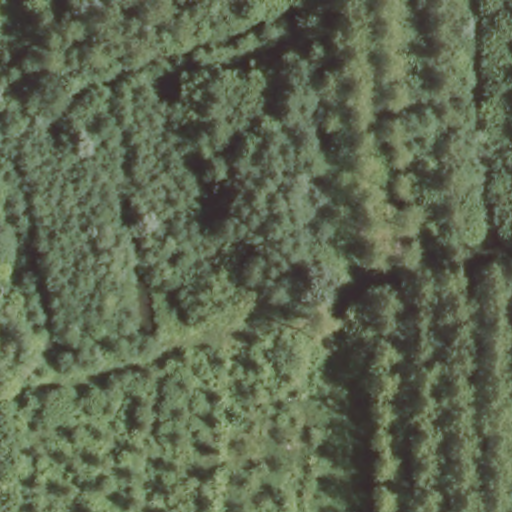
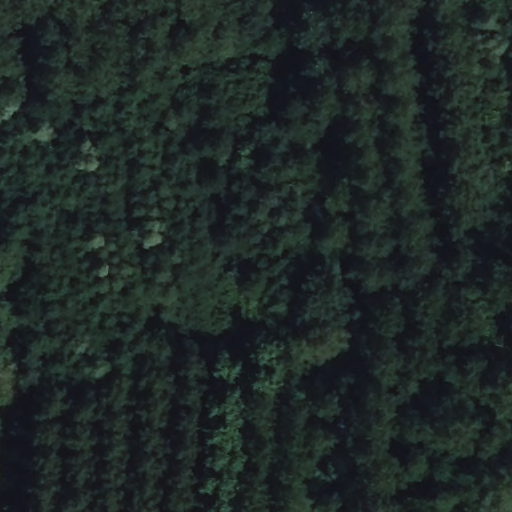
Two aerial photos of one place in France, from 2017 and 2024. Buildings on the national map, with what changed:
[]

